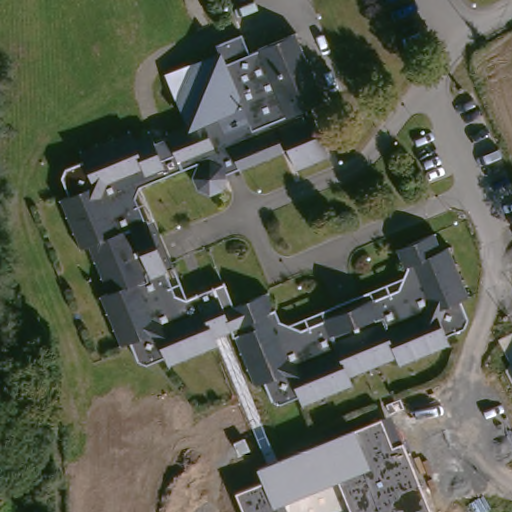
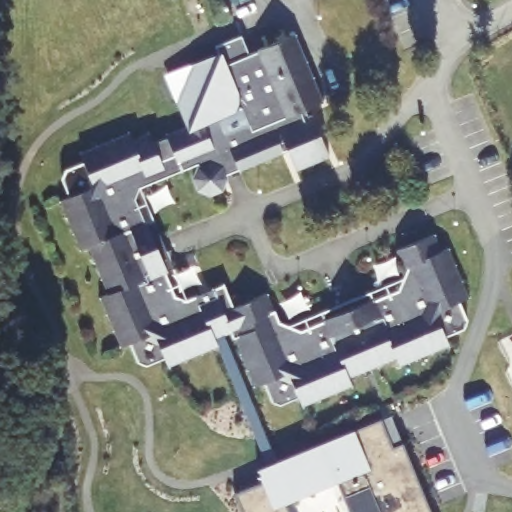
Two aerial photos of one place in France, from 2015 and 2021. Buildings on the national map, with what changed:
unchanged [(112,303),(108,295),(117,291),(96,242),(87,247),(64,195),(72,191),(63,170),(85,159),(83,152),(134,128),(138,135),(153,129),(165,152),(179,147),(170,127),(192,117),(181,93),(202,57),(223,47),(220,38),(243,27),(252,47),(288,31),(298,26),(325,88),(315,94),(306,97),(310,107),(317,104),(329,136),(330,137),(326,139),(321,141),(302,150),(295,135),(230,162),(223,180),(213,185),(198,182),(194,172),(198,155),(135,182),(132,193),(143,217),(149,216),(169,260),(113,302),(112,303)]
unchanged [(418,314),(410,320),(363,354),(312,391),(286,402),(275,377),(268,382),(243,326),(220,337),(224,346),(179,366),(175,357),(156,366),(150,364),(147,360),(139,343),(130,347),(112,303),(113,302),(169,260),(172,268),(166,272),(178,298),(194,297),(231,282),(241,305),(275,290),(289,321),(311,331),(333,320),(329,312),(381,290),(384,297),(408,286),(419,266),(407,242),(442,226),(450,243),(457,239),(473,274),(418,314)]
unchanged [(479,287),(471,292),(481,316),(459,327),(461,334),(410,356),(405,347),(357,370),(361,379),(316,399),(312,391),(363,354),(410,320),(418,314),(473,274),(479,287)]
unchanged [(236,495),(262,483),(257,469),(353,430),(381,420),(393,448),(402,445),(430,512),(350,512),(337,482),(283,503),(287,512),(243,512),(236,495)]

